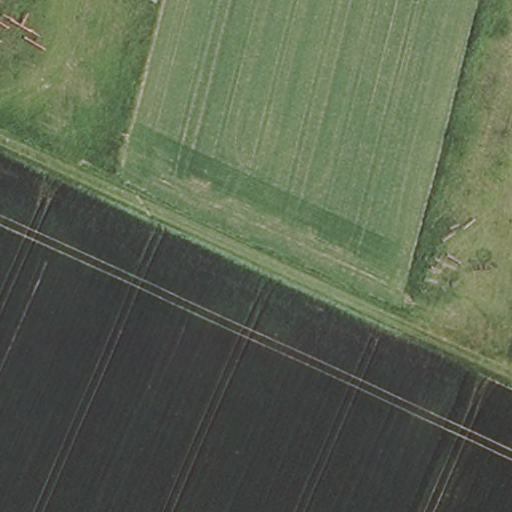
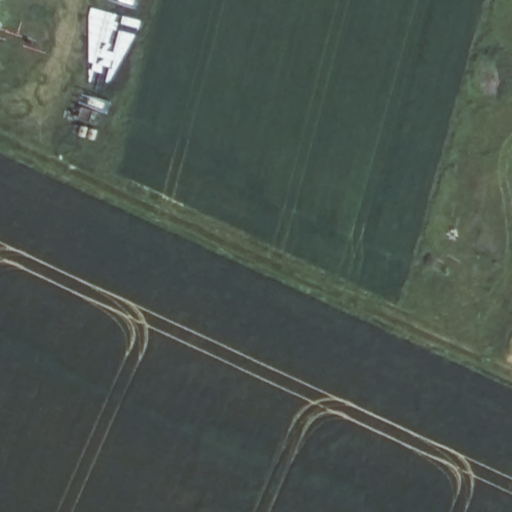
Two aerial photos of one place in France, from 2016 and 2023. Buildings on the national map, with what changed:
[]

